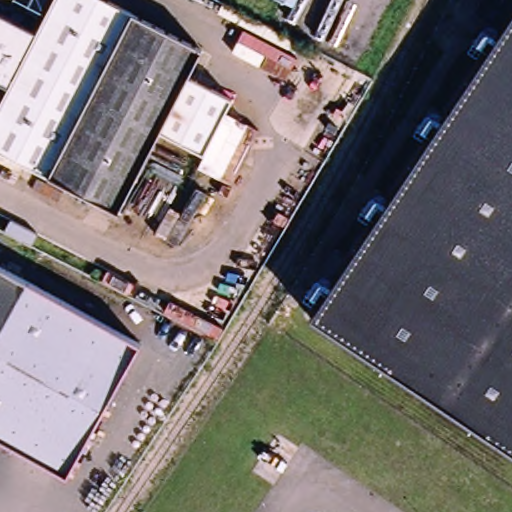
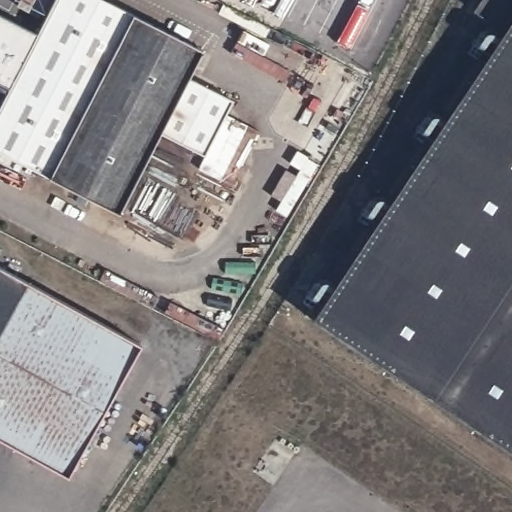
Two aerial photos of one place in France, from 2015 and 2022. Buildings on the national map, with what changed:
unchanged [(197,48),(184,76),(229,99),(202,152),(157,129),(116,210),(0,151),(0,101),(51,0),(102,0),(197,48)]
unchanged [(482,0),(512,0),(512,18),(505,27),(476,8),(482,0)]
unchanged [(512,453),(310,319),(325,295),(314,288),(321,278),(333,286),(383,210),(372,202),(377,193),(390,201),(440,128),(427,119),(434,109),(446,118),(495,43),(484,34),(490,26),(501,34),(505,27),(512,18),(512,453)]
unchanged [(0,345),(0,268),(33,286),(0,345)]
unchanged [(144,346),(73,478),(0,439),(0,345),(33,286),(144,346)]

